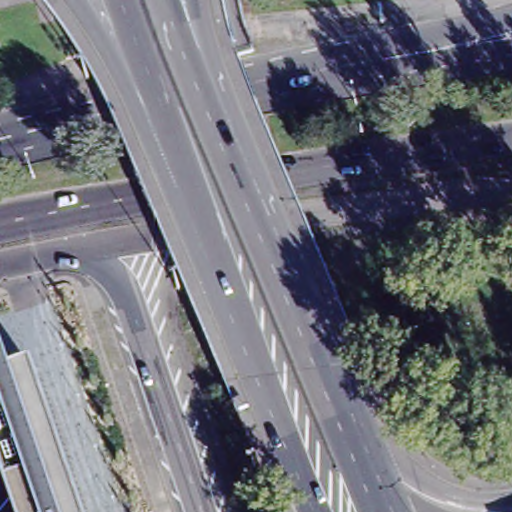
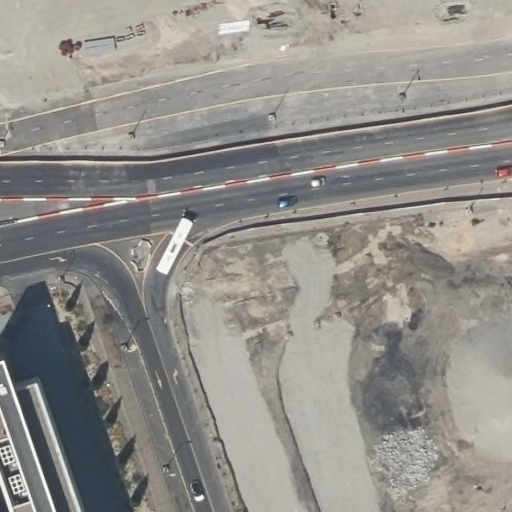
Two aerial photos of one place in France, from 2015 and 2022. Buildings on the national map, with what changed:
unchanged [(6,353),(17,384),(39,376),(85,512),(16,512),(0,465),(0,355),(6,353)]

